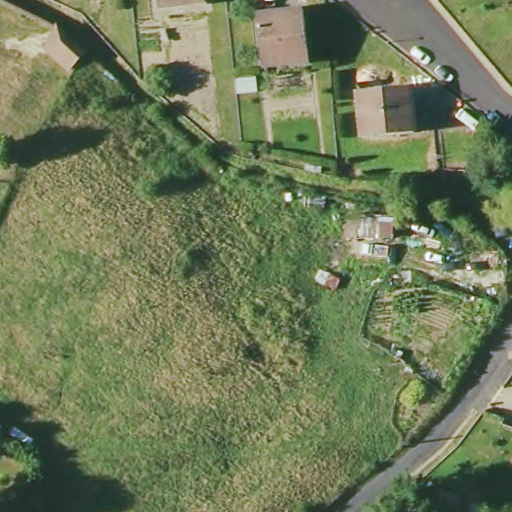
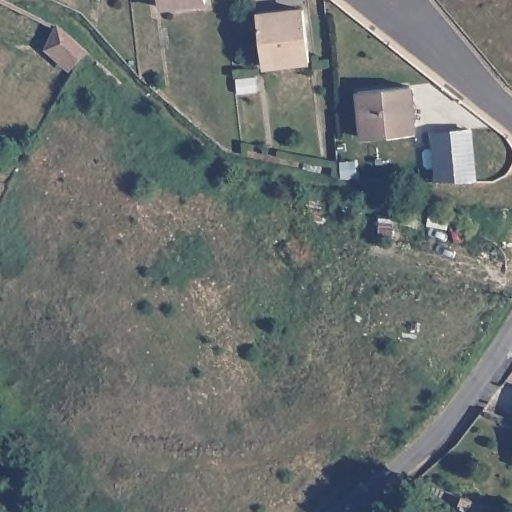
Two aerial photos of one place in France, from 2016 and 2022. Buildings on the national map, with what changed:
unchanged [(159,8),(158,0),(207,0),(208,3),(159,8)]
unchanged [(312,61),(264,67),(259,14),(306,9),(312,61)]
unchanged [(66,73),(43,54),(55,31),(81,57),(66,73)]
unchanged [(413,88),(417,134),(363,140),(359,93),(413,88)]
new [(436,182),(431,133),(475,129),(478,180),(436,182)]

